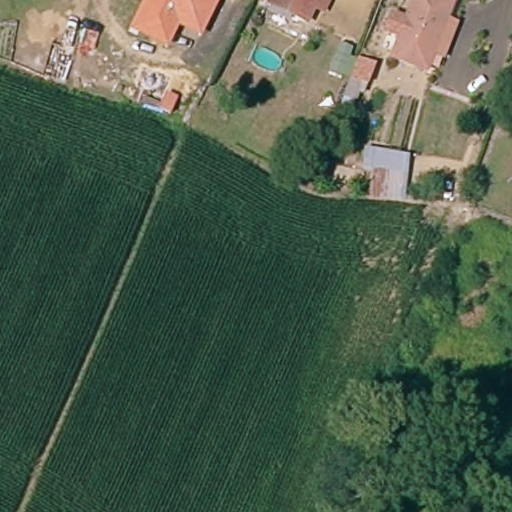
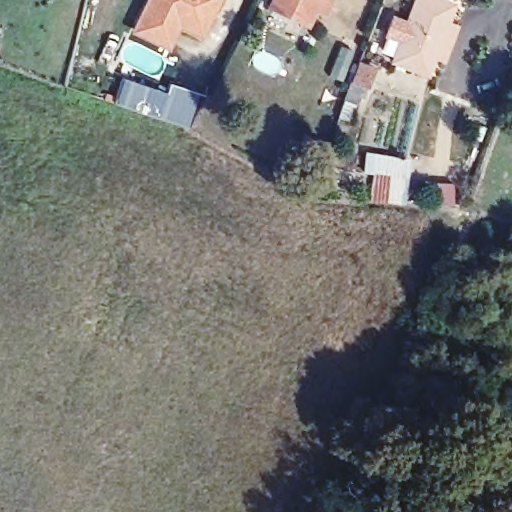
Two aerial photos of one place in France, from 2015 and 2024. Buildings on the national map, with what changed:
unchanged [(177,27),(165,49),(130,31),(145,0),(221,0),(201,38),(177,27)]
unchanged [(271,9),(274,0),(318,0),(313,12),(307,26),(271,9)]
unchanged [(387,31),(393,14),(407,19),(414,0),(453,0),(455,0),(431,70),(394,58),(402,36),(387,31)]
new [(357,36),(372,42),(362,73),(347,68),(357,36)]
new [(180,111),(172,122),(167,120),(169,116),(166,115),(165,119),(112,102),(121,78),(165,92),(167,83),(202,94),(195,116),(180,111)]
unchanged [(364,110),(359,128),(345,124),(349,108),(350,106),(364,110)]
unchanged [(377,152),(409,157),(407,204),(372,204),(377,152)]

